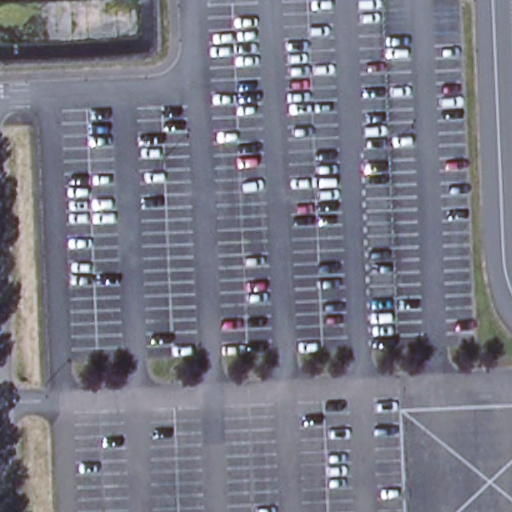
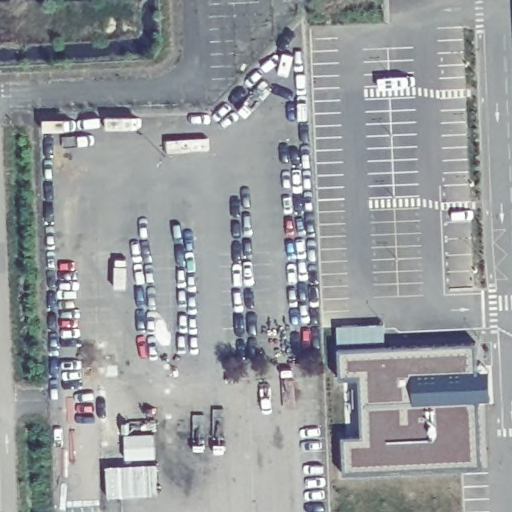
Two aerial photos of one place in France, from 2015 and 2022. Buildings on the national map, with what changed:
new [(383,324),(385,342),(337,344),(337,326),(383,324)]
new [(477,371),(489,370),(490,401),(479,402),(482,469),(343,475),(342,436),(361,436),(358,379),(339,380),(337,349),(477,343),(477,371)]
new [(155,462),(157,492),(107,495),(106,464),(155,462)]

